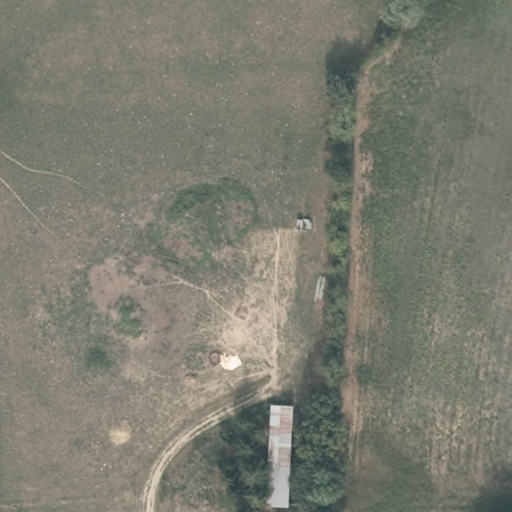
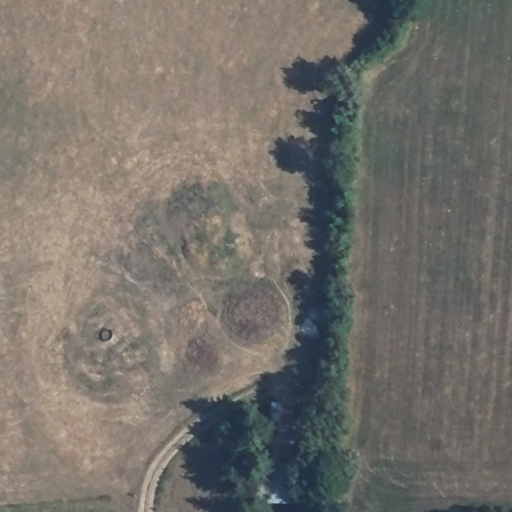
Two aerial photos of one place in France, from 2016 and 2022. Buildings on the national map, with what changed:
unchanged [(294,404),(290,507),(268,506),(271,404),(294,404)]

